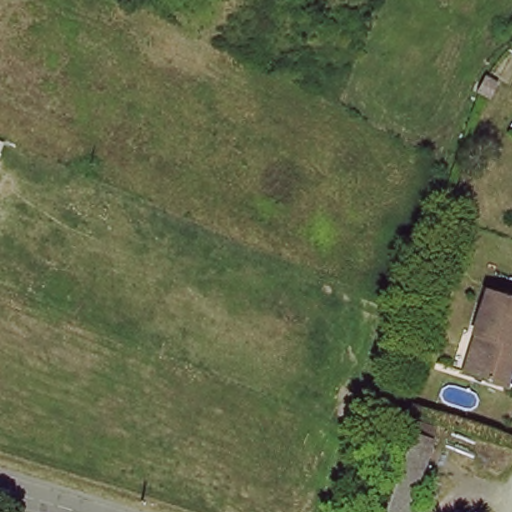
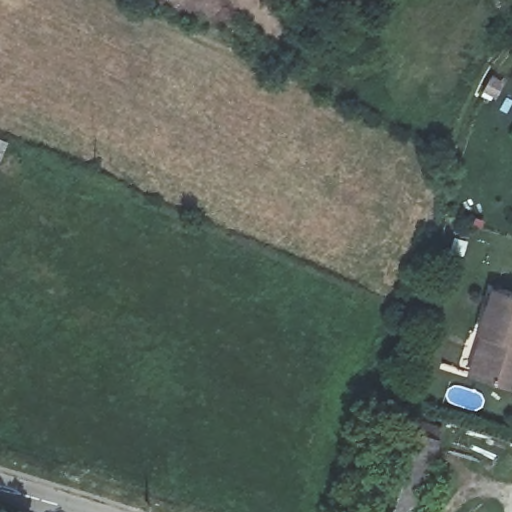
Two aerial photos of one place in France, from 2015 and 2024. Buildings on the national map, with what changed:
unchanged [(497,286),(512,291),(512,382),(484,373),(469,368),(483,329),(497,286)]
unchanged [(415,512),(365,512),(395,428),(440,441),(415,512)]

